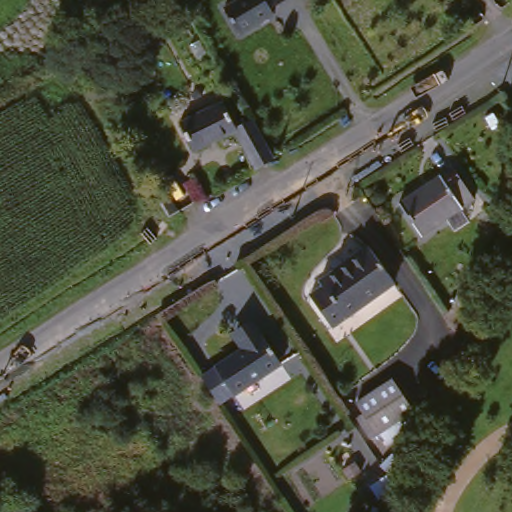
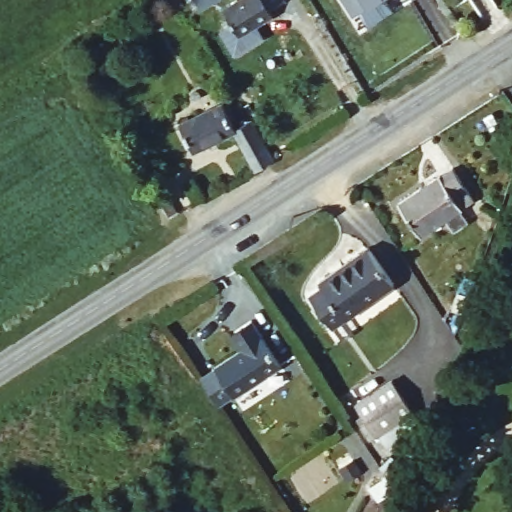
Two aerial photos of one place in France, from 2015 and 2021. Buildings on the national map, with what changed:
unchanged [(261,0),(271,14),(268,21),(231,50),(213,21),(241,0),(261,0)]
new [(370,25),(361,11),(352,16),(343,0),(388,0),(395,10),(370,25)]
unchanged [(221,106),(238,135),(193,163),(175,131),(221,106)]
unchanged [(277,160),(260,172),(238,135),(254,126),(256,124),(277,160)]
unchanged [(455,228),(447,216),(418,240),(397,211),(453,161),(475,194),(458,206),(466,218),(455,228)]
unchanged [(315,296),(312,291),(365,248),(390,281),(325,335),(303,304),(315,296)]
unchanged [(258,337),(280,370),(222,408),(199,374),(258,337)]
unchanged [(405,421),(367,444),(343,405),(386,383),(405,421)]

